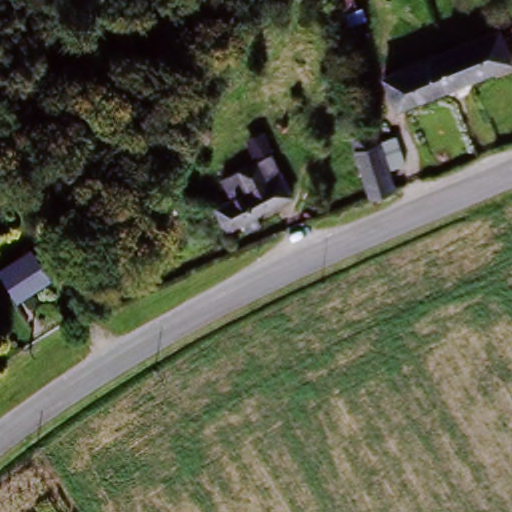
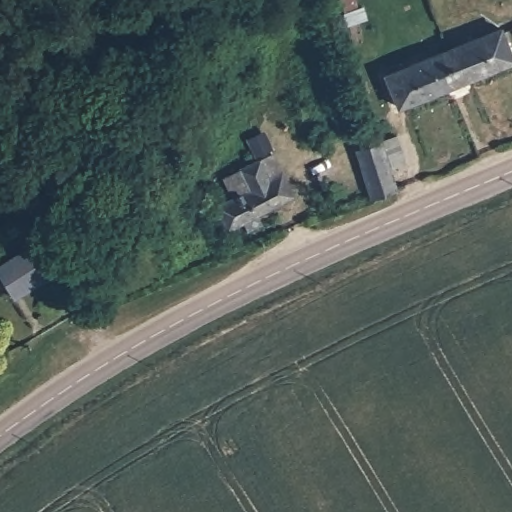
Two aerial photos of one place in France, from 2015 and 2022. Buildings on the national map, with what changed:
unchanged [(342,0),(352,0),(353,5),(343,7),(342,0)]
unchanged [(512,19),(512,31),(508,21),(512,19)]
unchanged [(380,49),(358,53),(353,31),(375,27),(380,49)]
unchanged [(512,58),(398,107),(385,79),(500,29),(512,56),(512,58)]
unchanged [(396,138),(405,167),(391,170),(398,195),(373,202),(355,152),(396,138)]
unchanged [(272,156),(293,202),(228,229),(215,203),(234,194),(228,178),(272,156)]
unchanged [(32,257),(47,278),(15,301),(0,281),(0,278),(32,257)]

